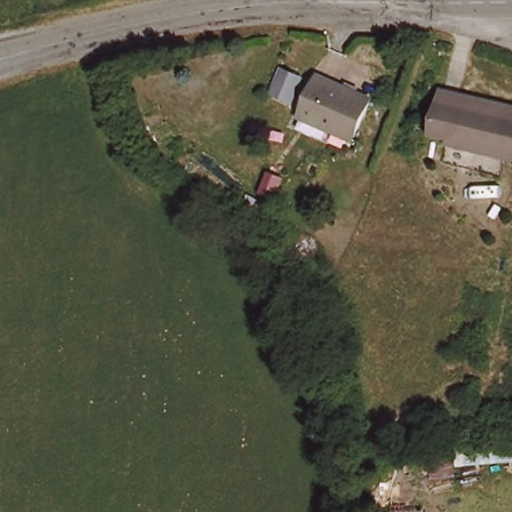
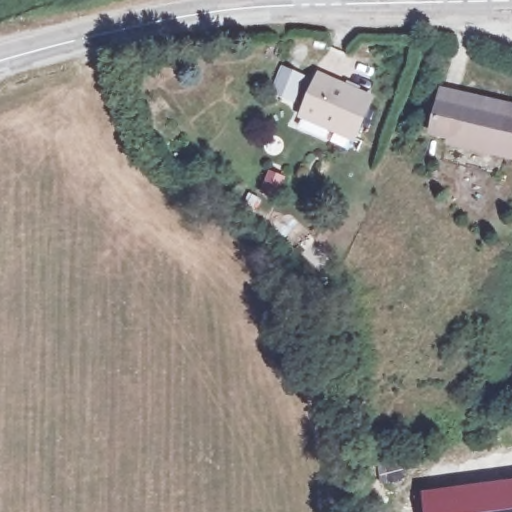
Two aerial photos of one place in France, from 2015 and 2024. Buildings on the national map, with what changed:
unchanged [(305,83),(294,106),(274,96),(285,74),(305,83)]
unchanged [(362,101),(342,140),(291,116),(310,77),(362,101)]
unchanged [(440,139),(442,131),(425,126),(437,84),(512,106),(512,163),(440,139)]
new [(427,495),(512,484),(512,512),(429,512),(427,495)]

